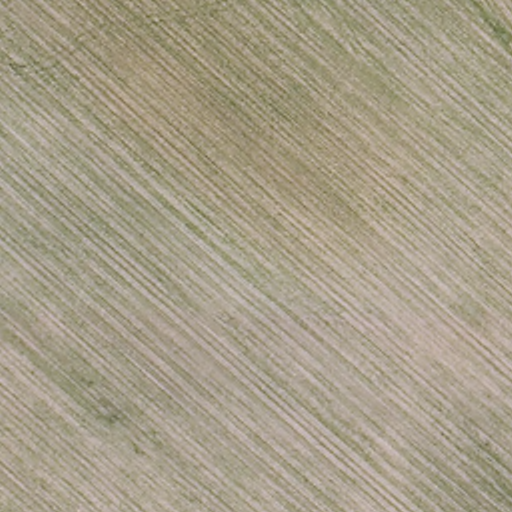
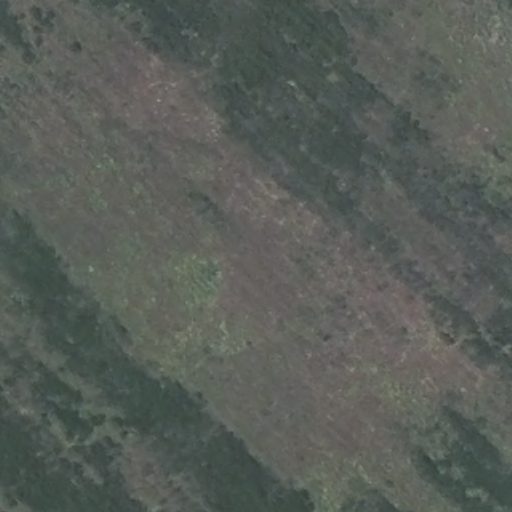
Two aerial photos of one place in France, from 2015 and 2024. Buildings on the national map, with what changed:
[]

